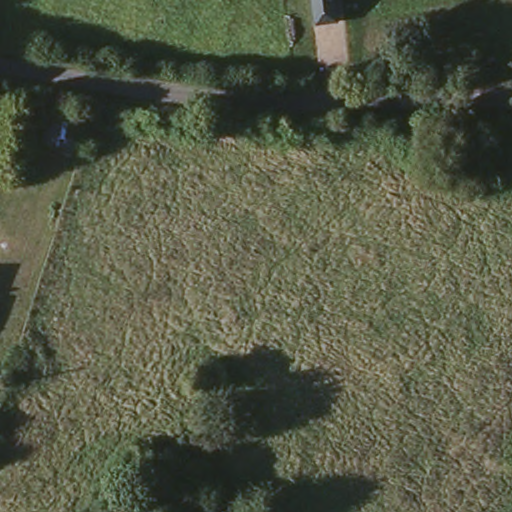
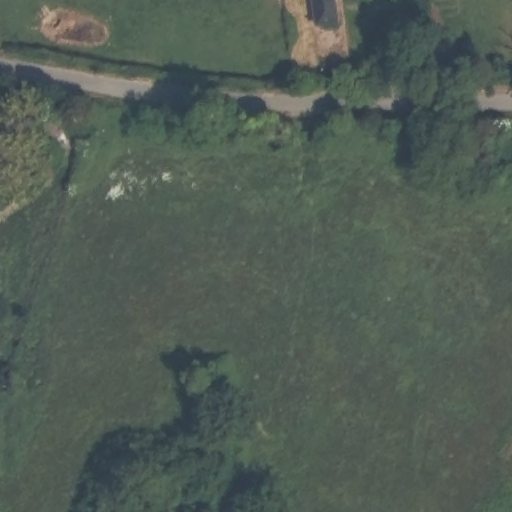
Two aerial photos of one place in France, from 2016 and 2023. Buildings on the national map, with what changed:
unchanged [(343,26),(314,32),(308,0),(340,0),(343,26)]
unchanged [(80,115),(78,142),(46,140),(47,114),(80,115)]

